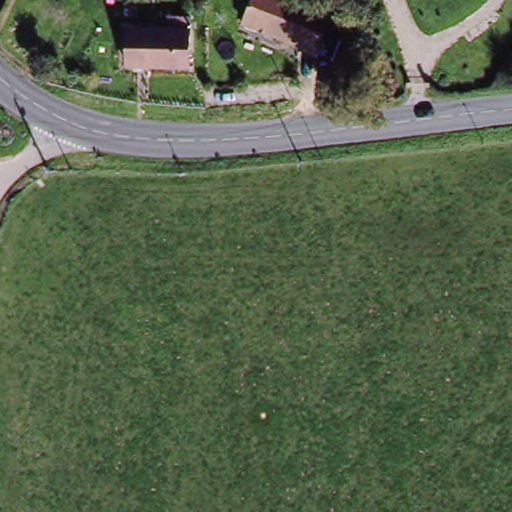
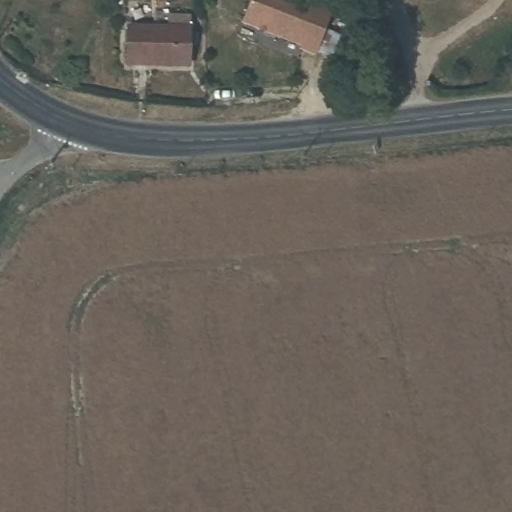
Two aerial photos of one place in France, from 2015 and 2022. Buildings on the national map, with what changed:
unchanged [(334,10),(318,50),(242,17),(249,0),(310,0),(334,10)]
unchanged [(186,68),(118,59),(123,27),(163,33),(166,16),(189,19),(186,68)]

